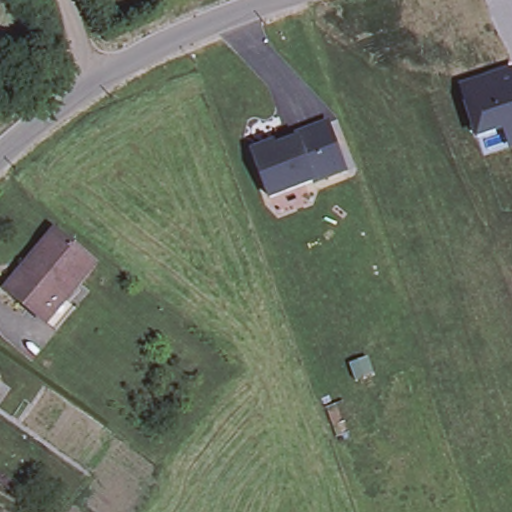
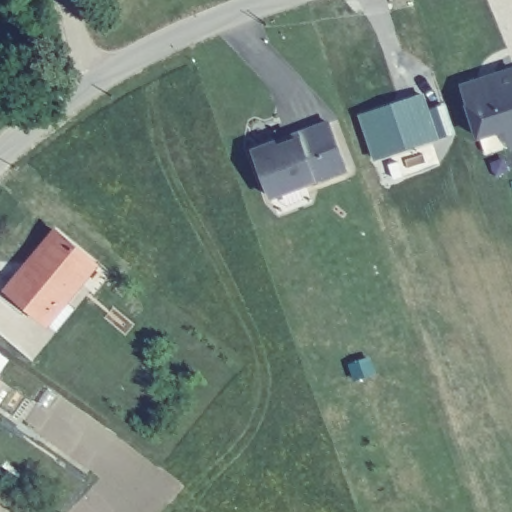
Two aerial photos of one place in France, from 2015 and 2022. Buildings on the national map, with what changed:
unchanged [(504,130),(476,139),(459,84),(512,66),(512,150),(511,151),(504,130)]
new [(425,97),(439,139),(374,161),(359,117),(425,97)]
unchanged [(276,217),(269,198),(251,152),(274,144),(276,149),(298,141),(296,136),(328,124),(344,172),(313,184),(312,182),(303,185),(310,204),(276,217)]
unchanged [(56,331),(46,323),(12,295),(8,291),(26,269),(57,232),(96,264),(65,301),(75,308),(56,331)]

